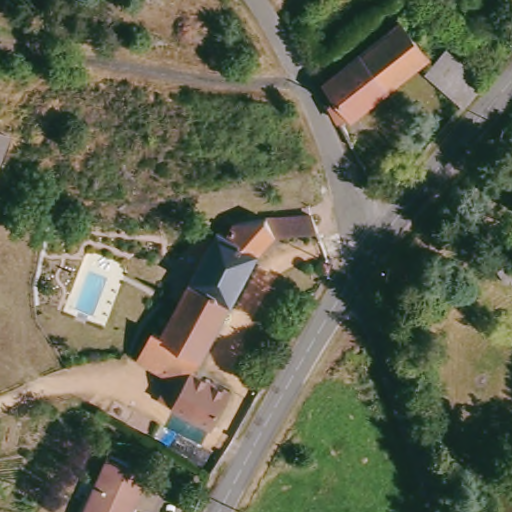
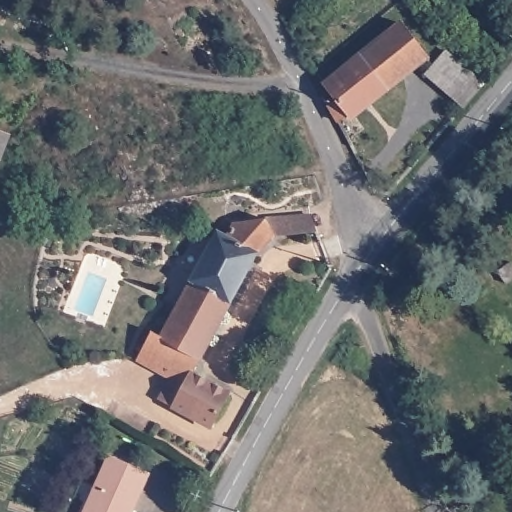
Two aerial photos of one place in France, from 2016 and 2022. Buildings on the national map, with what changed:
unchanged [(344,116),(334,97),(340,91),(324,71),(401,8),(430,46),(344,116)]
unchanged [(447,40),(482,71),(459,100),(422,70),(435,53),(447,40)]
unchanged [(0,137),(0,126),(5,128),(0,137)]
unchanged [(150,321),(159,325),(220,213),(307,214),(311,225),(267,227),(189,365),(230,387),(211,423),(170,401),(184,373),(136,347),(150,321)]
unchanged [(109,454),(142,468),(124,507),(131,511),(130,512),(83,512),(109,454)]

